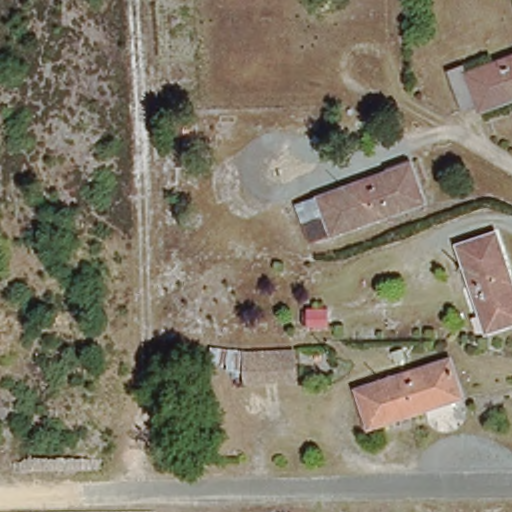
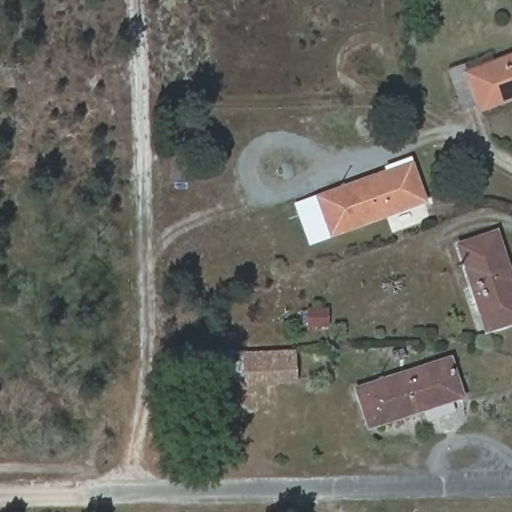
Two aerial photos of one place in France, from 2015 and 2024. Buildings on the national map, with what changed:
unchanged [(460,68),(512,49),(512,99),(475,113),(460,68)]
unchanged [(301,199),(404,163),(419,203),(319,240),(301,199)]
unchanged [(455,240),(490,227),(512,286),(512,321),(486,329),(455,240)]
unchanged [(297,383),(244,384),(241,349),(295,347),(297,383)]
unchanged [(357,389),(444,356),(459,394),(374,426),(357,389)]

